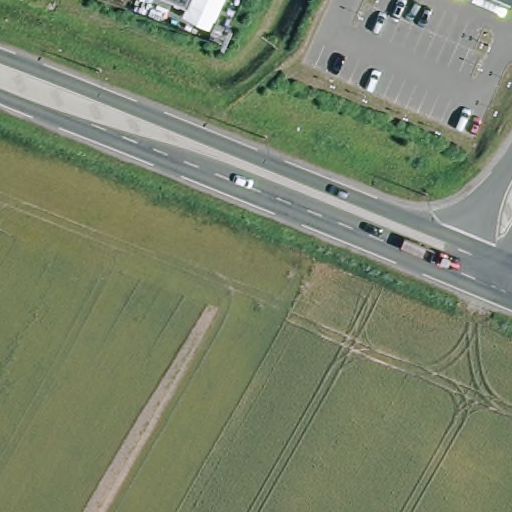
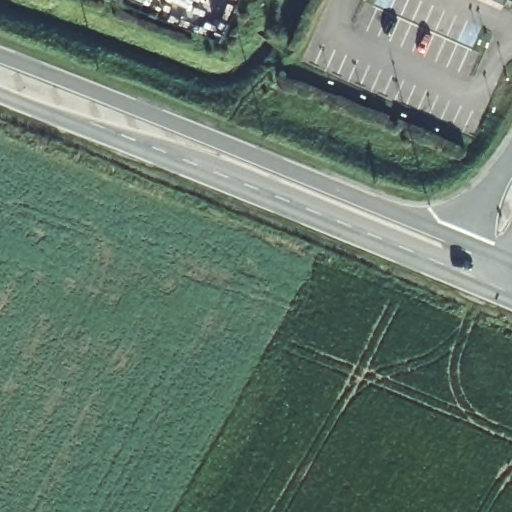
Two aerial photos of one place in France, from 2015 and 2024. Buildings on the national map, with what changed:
unchanged [(502,10),(479,0),(506,0),(502,10)]

